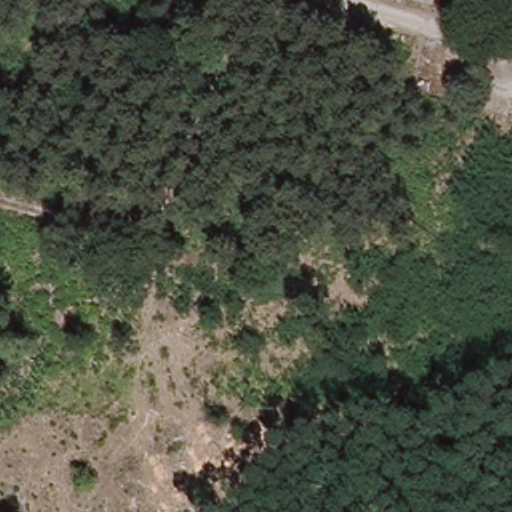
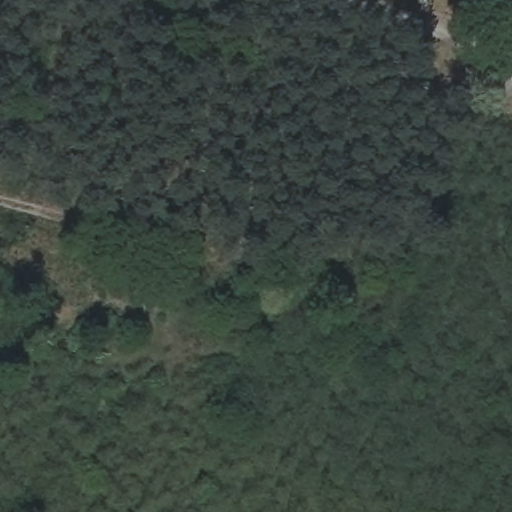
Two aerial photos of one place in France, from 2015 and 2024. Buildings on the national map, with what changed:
unchanged [(508,0),(512,0),(512,28),(498,23),(508,0)]

